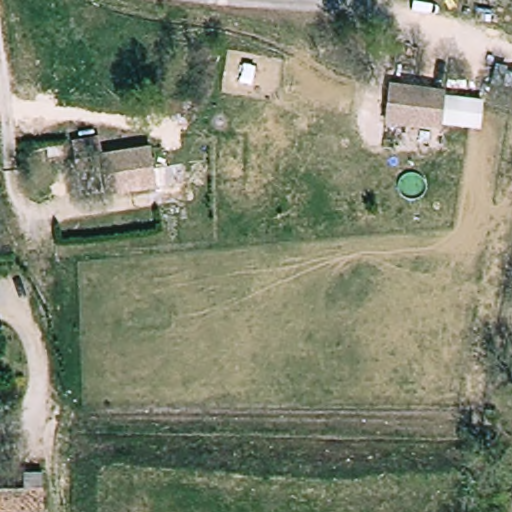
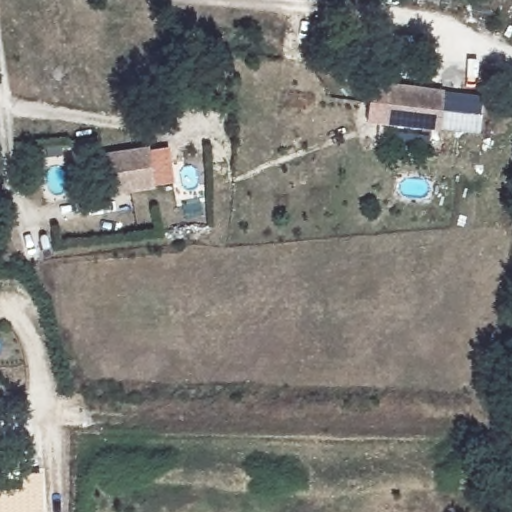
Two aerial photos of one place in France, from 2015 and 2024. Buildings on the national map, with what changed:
unchanged [(443,130),(390,121),(395,84),(449,92),(443,130)]
unchanged [(448,96),(482,101),(478,129),(444,124),(448,96)]
unchanged [(110,130),(111,148),(99,148),(83,149),(83,130),(99,130),(110,130)]
unchanged [(162,185),(113,186),(111,148),(160,146),(162,185)]
unchanged [(57,442),(58,426),(72,427),(72,442),(57,442)]
unchanged [(23,487),(23,465),(42,466),(43,512),(9,512),(7,488),(23,487)]
unchanged [(9,512),(0,512),(0,489),(7,488),(9,512)]

